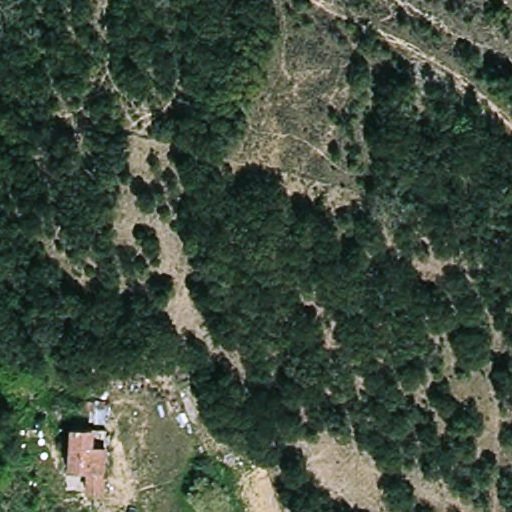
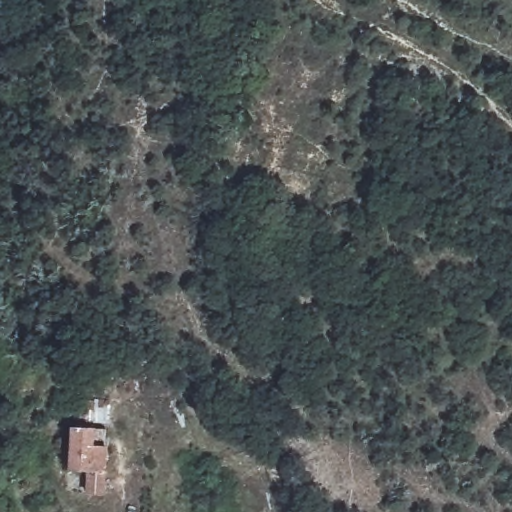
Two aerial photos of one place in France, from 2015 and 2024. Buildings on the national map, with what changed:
unchanged [(93,431),(93,448),(110,449),(108,497),(89,497),(90,470),(70,469),(71,430),(93,431)]

